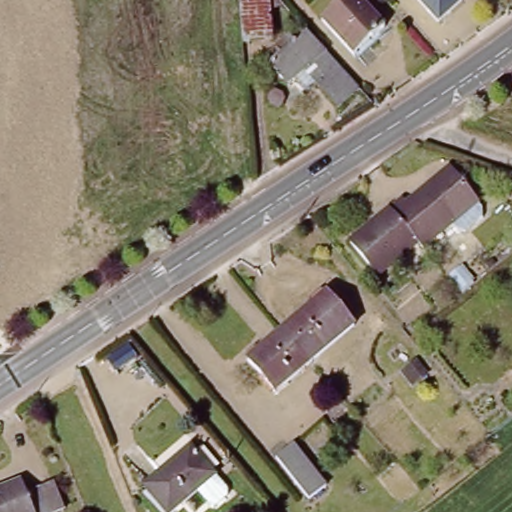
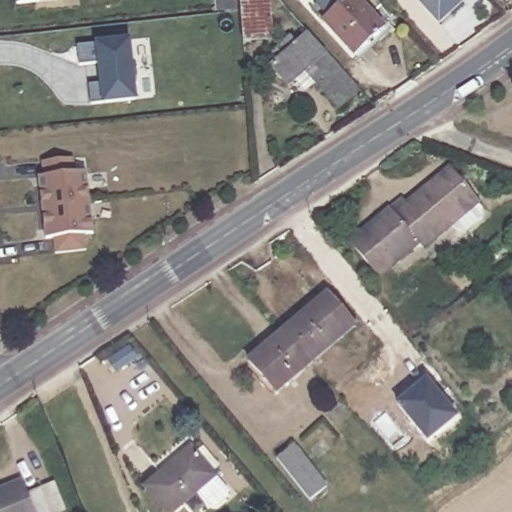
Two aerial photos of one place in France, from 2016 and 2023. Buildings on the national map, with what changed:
new [(18,2),(17,0),(36,0),(18,2)]
unchanged [(271,39),(243,41),(239,0),(267,0),(271,39)]
unchanged [(352,54),(320,19),(340,0),(363,0),(385,24),(352,54)]
unchanged [(441,21),(422,0),(464,0),(441,21)]
unchanged [(295,77),(286,85),(269,66),(281,54),(275,46),(290,33),(296,40),(306,31),(335,64),(358,88),(337,107),(313,80),(305,89),(295,77)]
new [(137,100),(102,104),(102,100),(93,102),(90,83),(100,83),(97,61),(81,63),(79,45),(95,44),(95,40),(129,39),(137,100)]
new [(85,234),(87,250),(56,252),(54,237),(47,237),(38,176),(45,176),(42,160),(74,157),(77,172),(87,171),(94,232),(85,234)]
unchanged [(476,206),(476,215),(461,229),(452,225),(448,220),(416,246),(412,241),(372,273),(344,240),(395,199),(399,203),(443,167),(476,206)]
unchanged [(241,354),(266,332),(275,325),(320,288),(347,320),(305,358),(293,367),(269,387),(241,354)]
unchanged [(184,436),(220,478),(220,485),(212,492),(204,491),(193,478),(161,506),(137,477),(184,436)]
unchanged [(288,450),(319,490),(303,503),(271,463),(288,450)]
unchanged [(21,481),(26,492),(40,487),(50,512),(0,512),(0,490),(21,481)]

